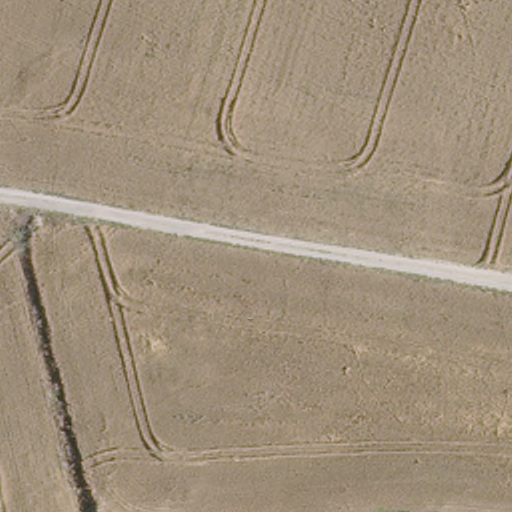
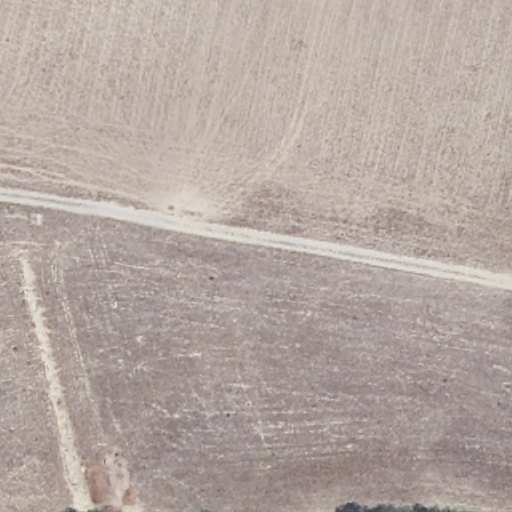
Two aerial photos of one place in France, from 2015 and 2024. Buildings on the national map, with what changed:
unchanged [(38,204),(39,217),(28,217),(28,204),(38,204)]

